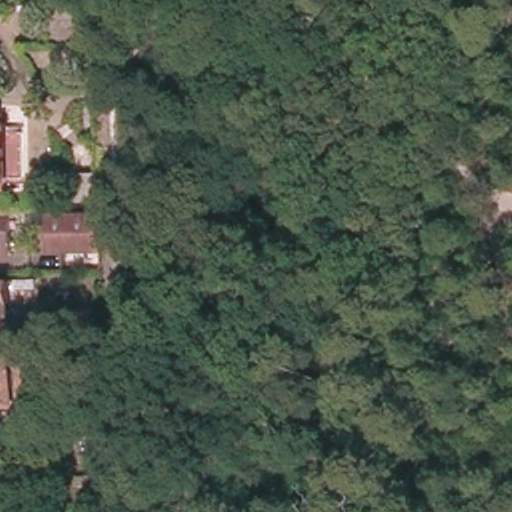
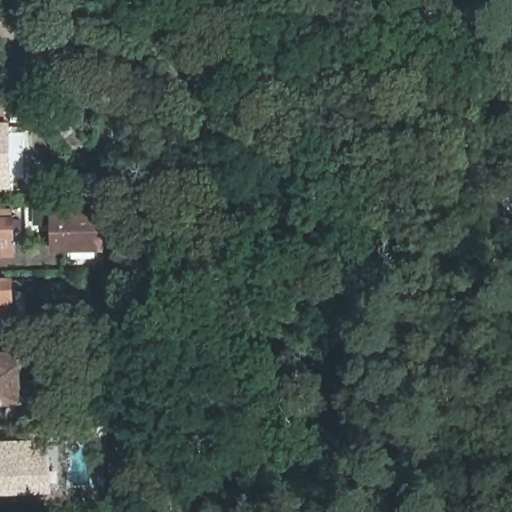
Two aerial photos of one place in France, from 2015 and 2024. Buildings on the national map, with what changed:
unchanged [(0,170),(0,116),(9,116),(10,170),(0,170)]
unchanged [(100,207),(60,209),(60,179),(99,177),(100,207)]
unchanged [(46,227),(33,227),(33,214),(46,214),(46,227)]
unchanged [(50,244),(50,219),(100,217),(101,252),(89,252),(50,254),(50,244)]
unchanged [(15,253),(0,254),(0,218),(14,218),(15,253)]
unchanged [(35,286),(15,287),(15,278),(34,278),(35,286)]
unchanged [(9,312),(0,312),(0,279),(7,279),(9,312)]
unchanged [(104,311),(105,327),(55,328),(54,312),(104,311)]
unchanged [(0,354),(11,353),(11,362),(21,361),(24,392),(14,392),(15,403),(0,404),(0,354)]
new [(0,441),(41,440),(41,456),(50,455),(52,495),(0,496),(0,441)]
unchanged [(69,506),(69,495),(83,495),(83,472),(105,473),(105,505),(69,506)]

